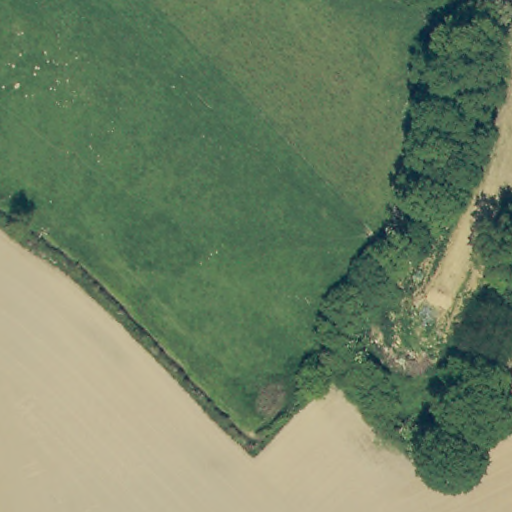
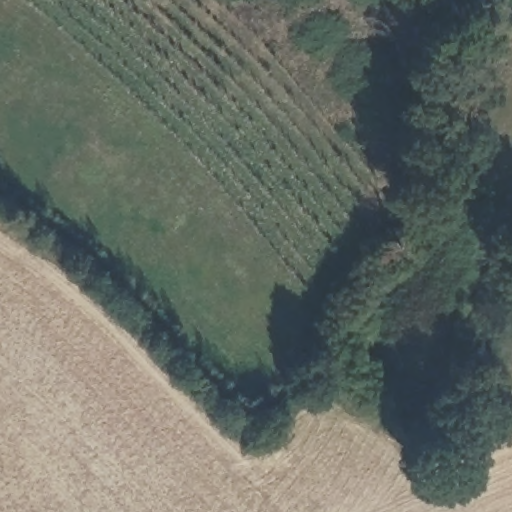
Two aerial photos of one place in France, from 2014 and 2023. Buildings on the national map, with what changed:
[]

